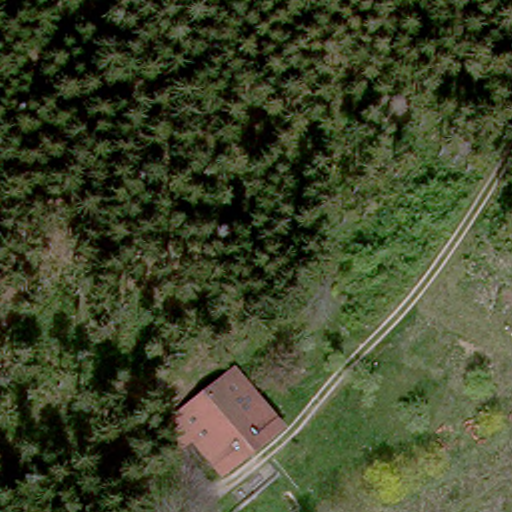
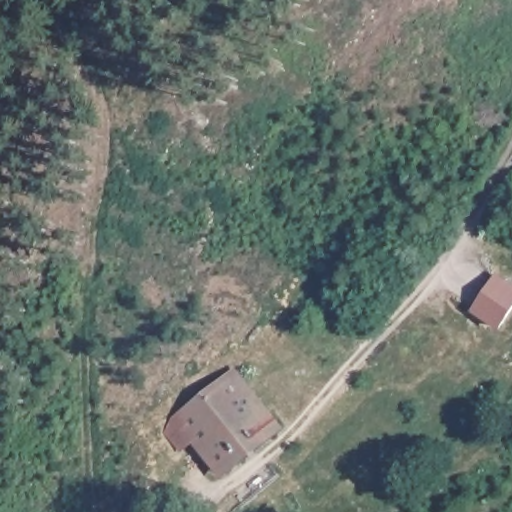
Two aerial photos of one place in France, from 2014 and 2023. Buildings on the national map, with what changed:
new [(470,312),(497,273),(512,283),(512,313),(500,332),(470,312)]
unchanged [(230,378),(272,433),(219,477),(213,470),(175,422),(230,378)]

